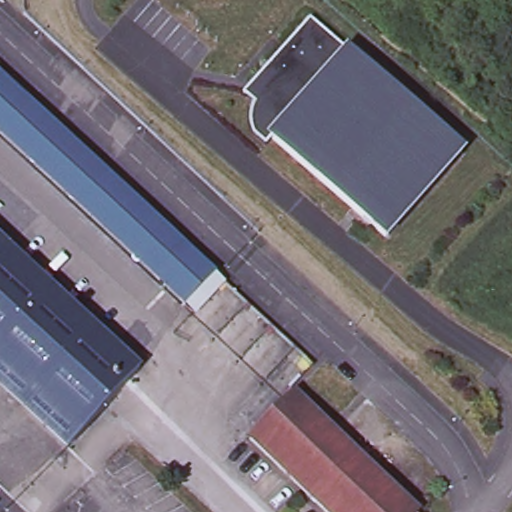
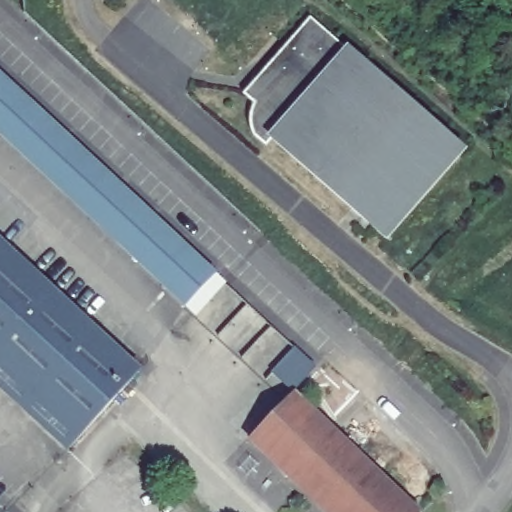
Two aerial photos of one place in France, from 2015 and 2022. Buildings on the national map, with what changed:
unchanged [(466,152),(387,243),(271,139),(266,147),(256,137),(252,127),(251,115),(256,103),(244,92),(311,16),(466,152)]
unchanged [(181,302),(0,133),(0,74),(211,271),(181,302)]
unchanged [(0,255),(0,244),(5,250),(0,255)]
unchanged [(139,373),(74,443),(0,374),(0,255),(5,250),(139,373)]
unchanged [(293,392),(417,511),(415,512),(326,512),(248,437),(293,392)]

